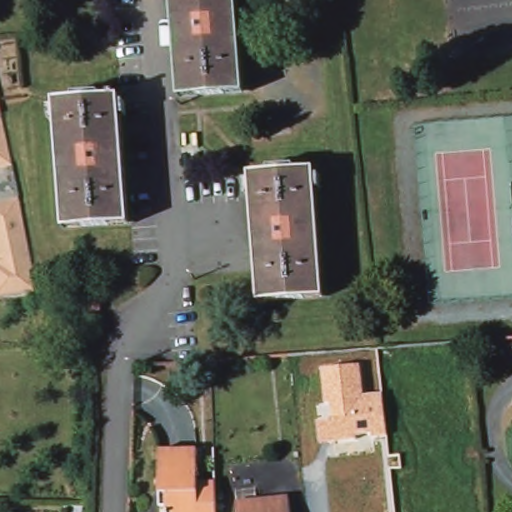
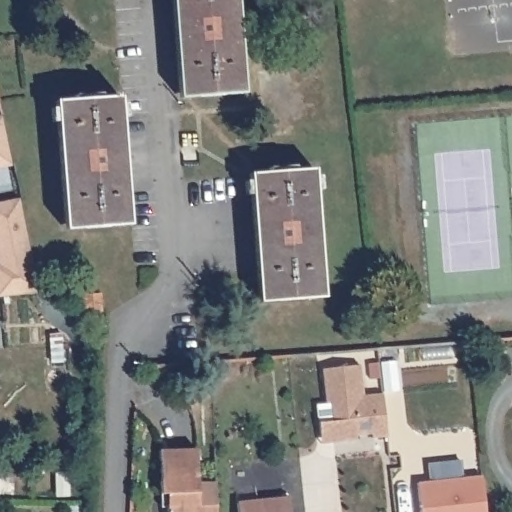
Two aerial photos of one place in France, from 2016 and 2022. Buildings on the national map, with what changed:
unchanged [(248,87),(183,93),(173,0),(238,0),(248,87)]
unchanged [(124,98),(132,219),(70,223),(60,103),(124,98)]
unchanged [(12,164),(0,166),(0,113),(1,113),(12,164)]
unchanged [(314,174),(325,297),(262,300),(250,177),(314,174)]
unchanged [(36,290),(0,293),(0,200),(19,196),(36,290)]
unchanged [(360,366),(362,395),(383,393),(386,437),(320,443),(319,423),(331,421),(330,404),(326,404),(322,369),(360,366)]
unchanged [(216,482),(217,512),(169,512),(169,491),(160,491),(160,450),(197,449),(199,483),(216,482)]
new [(482,475),(485,512),(420,512),(417,482),(482,475)]
unchanged [(290,512),(243,512),(241,502),(289,498),(290,512)]

